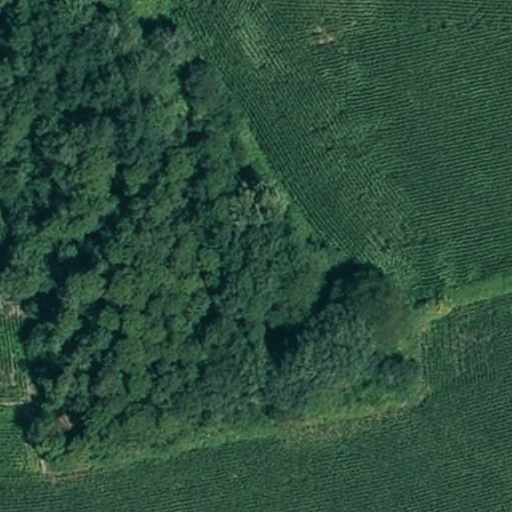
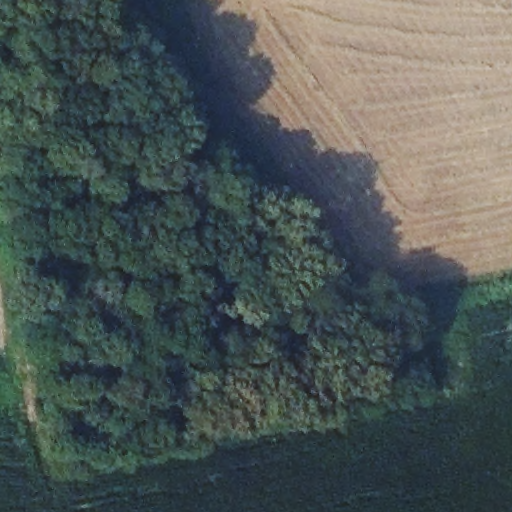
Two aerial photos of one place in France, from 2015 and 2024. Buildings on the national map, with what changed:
[]

